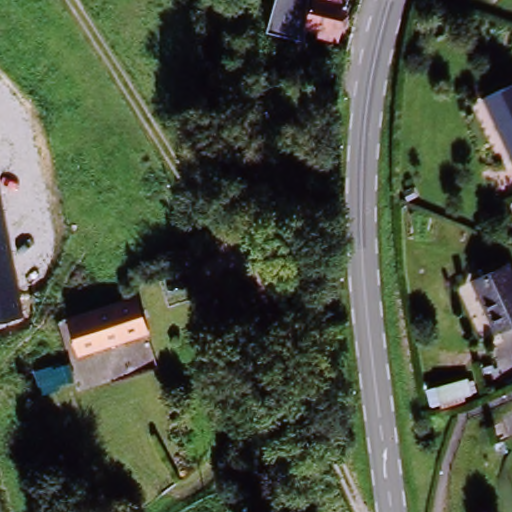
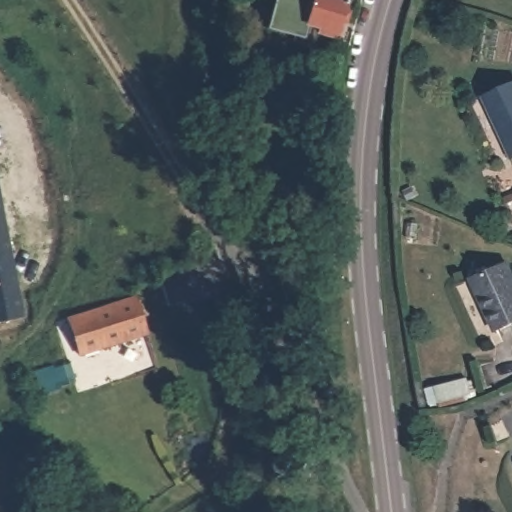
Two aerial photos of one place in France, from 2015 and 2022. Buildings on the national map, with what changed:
unchanged [(352,4),(337,42),(320,36),(321,32),(305,25),(314,0),(342,0),(352,4)]
unchanged [(352,4),(342,0),(353,0),(352,4)]
unchanged [(512,86),(512,152),(487,98),(512,86)]
unchanged [(0,200),(22,330),(0,333),(0,200)]
unchanged [(476,286),(510,271),(512,274),(512,331),(497,337),(476,286)]
unchanged [(145,340),(80,359),(67,320),(139,299),(145,340)]

